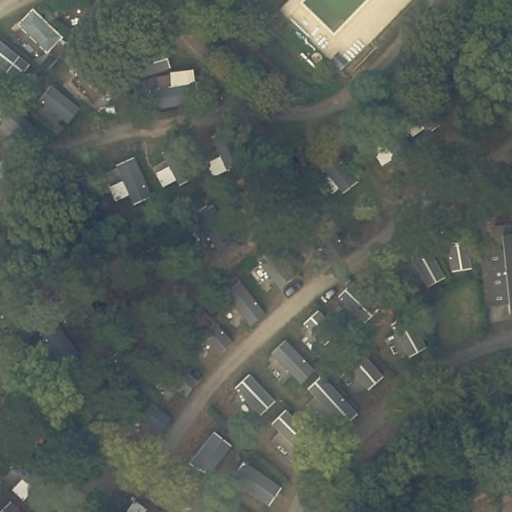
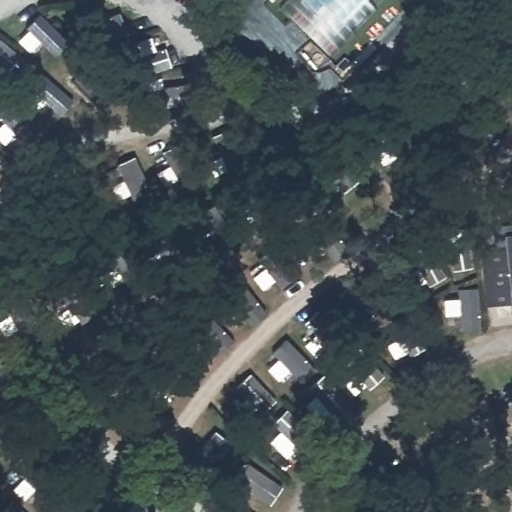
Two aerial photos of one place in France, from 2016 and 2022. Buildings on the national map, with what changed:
unchanged [(512,229),(512,307),(488,307),(480,234),(512,229)]

